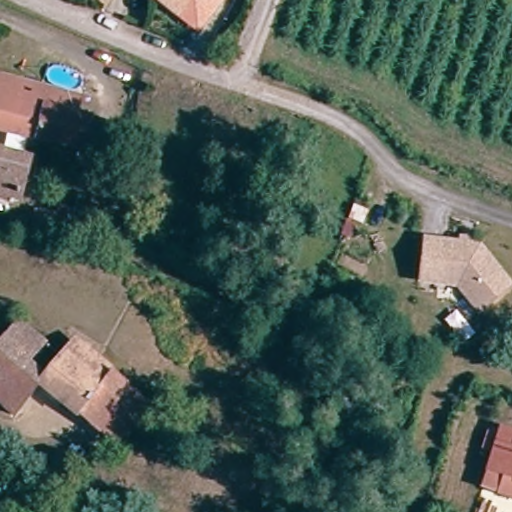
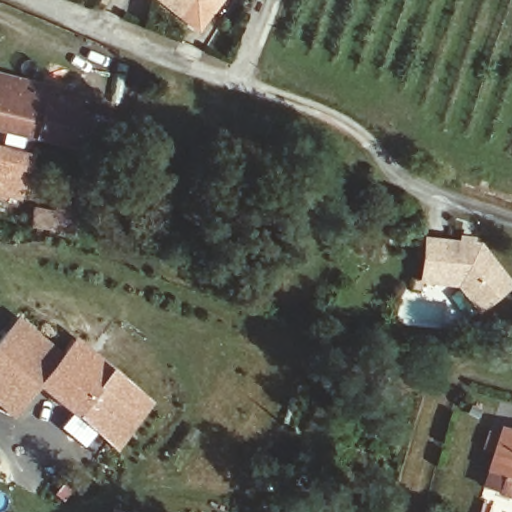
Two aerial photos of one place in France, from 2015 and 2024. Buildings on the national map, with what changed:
unchanged [(194,24),(163,0),(212,0),(194,24)]
unchanged [(91,145),(0,125),(0,76),(80,93),(77,107),(98,112),(91,145)]
unchanged [(0,189),(0,148),(32,155),(22,194),(0,189)]
unchanged [(75,237),(34,227),(32,227),(35,217),(55,222),(59,212),(80,217),(75,237)]
unchanged [(482,246),(512,283),(512,286),(482,310),(461,285),(423,281),(427,240),(482,246)]
unchanged [(114,457),(105,451),(114,441),(42,382),(15,415),(0,403),(0,344),(19,321),(65,360),(80,342),(155,403),(114,457)]
unchanged [(512,428),(512,486),(493,479),(512,428)]

